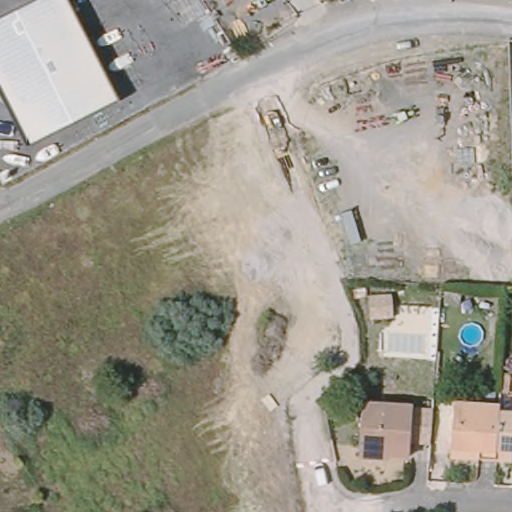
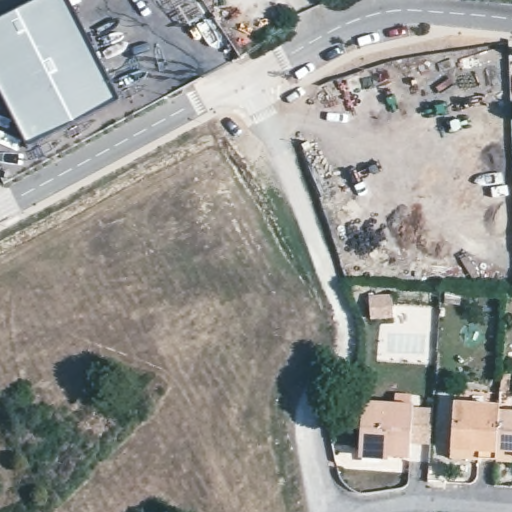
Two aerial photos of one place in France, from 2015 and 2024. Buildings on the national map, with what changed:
unchanged [(120,97),(27,145),(0,91),(0,15),(30,0),(70,0),(73,5),(120,97)]
unchanged [(391,296),(392,318),(370,320),(369,297),(391,296)]
unchanged [(354,455),(355,446),(358,405),(407,408),(404,458),(385,456),(384,459),(354,455)]
unchanged [(446,454),(449,410),(495,412),(495,417),(491,464),(474,463),(445,462),(446,454)]
unchanged [(509,456),(508,465),(491,464),(495,417),(512,418),(512,456),(509,456)]

